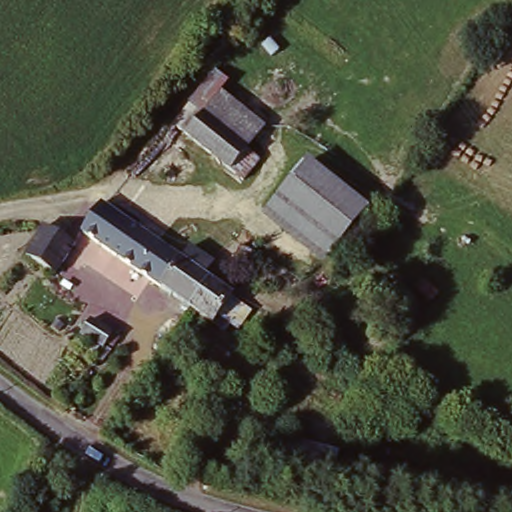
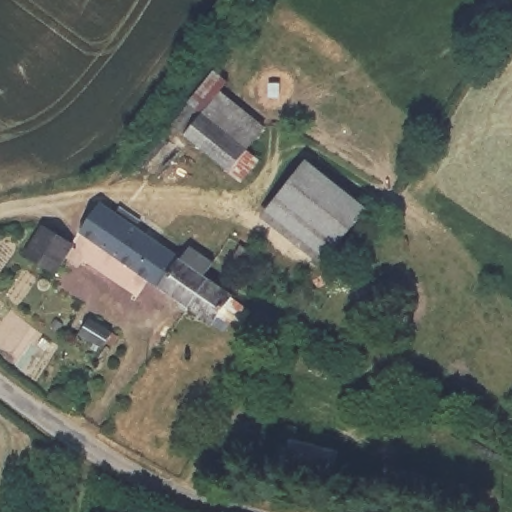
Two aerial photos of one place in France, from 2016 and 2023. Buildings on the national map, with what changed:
unchanged [(183,119),(218,73),(235,84),(225,97),(266,131),(232,175),(176,130),(183,119)]
unchanged [(313,164),(371,214),(334,261),(277,210),(313,164)]
unchanged [(106,207),(115,214),(122,207),(143,221),(136,230),(157,246),(172,226),(196,242),(192,251),(214,264),(203,280),(184,309),(84,235),(106,207)]
unchanged [(78,245),(58,274),(32,257),(50,228),(78,245)]
unchanged [(245,273),(232,266),(243,247),(256,257),(245,273)]
unchanged [(203,280),(229,297),(244,307),(227,326),(217,320),(210,327),(184,309),(203,280)]
unchanged [(118,340),(111,349),(105,344),(100,350),(80,334),(91,320),(118,340)]

